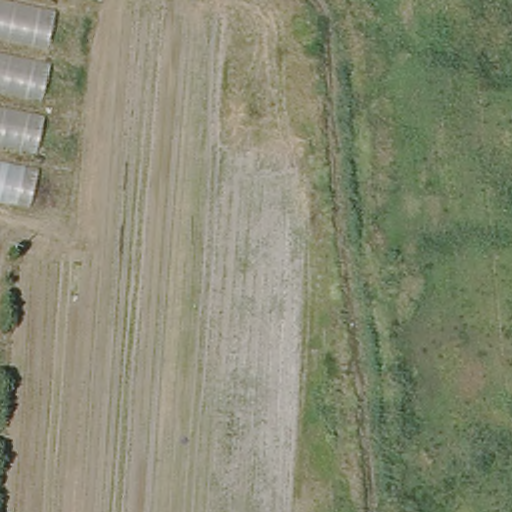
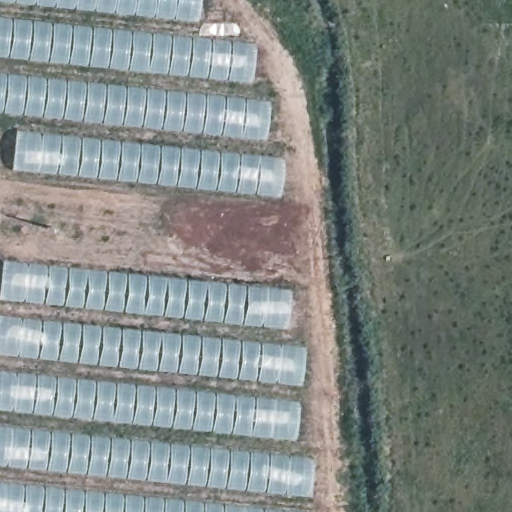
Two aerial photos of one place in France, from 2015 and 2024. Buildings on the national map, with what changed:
new [(0,1),(0,0),(201,0),(199,21),(0,1)]
demolished [(60,0),(23,195),(0,191),(0,0),(60,0)]
new [(236,40),(257,44),(253,84),(0,57),(0,16),(236,40)]
new [(272,100),(268,139),(232,137),(109,125),(0,113),(0,72),(272,100)]
new [(15,130),(285,157),(281,198),(196,188),(11,169),(15,130)]
new [(2,260),(292,290),(287,329),(0,299),(0,279),(2,260)]
new [(305,346),(302,386),(125,368),(0,354),(0,315),(305,346)]
new [(117,381),(300,401),(296,441),(0,409),(0,370),(117,381)]
new [(136,438),(313,457),(310,497),(0,465),(0,425),(136,438)]
new [(307,512),(0,512),(0,481),(307,512)]

